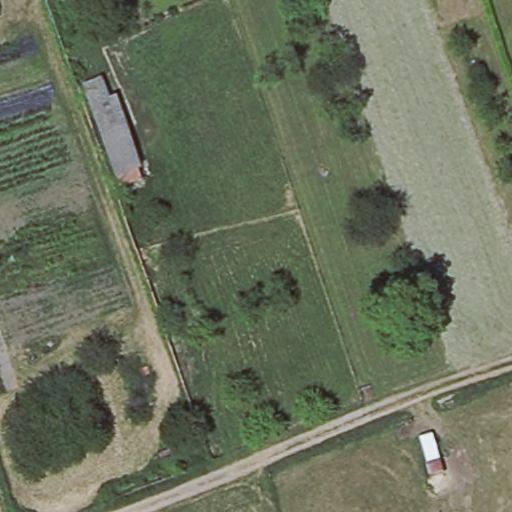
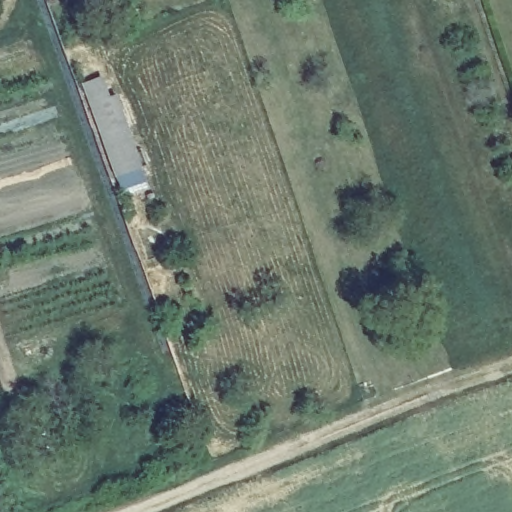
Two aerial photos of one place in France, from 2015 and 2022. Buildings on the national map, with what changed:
unchanged [(105,70),(113,94),(122,91),(146,166),(150,179),(119,189),(80,80),(105,70)]

